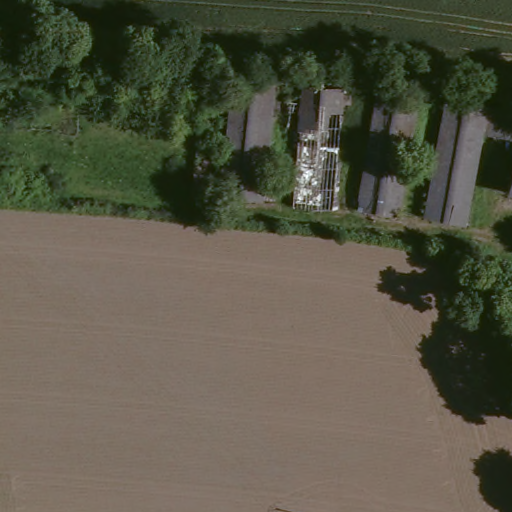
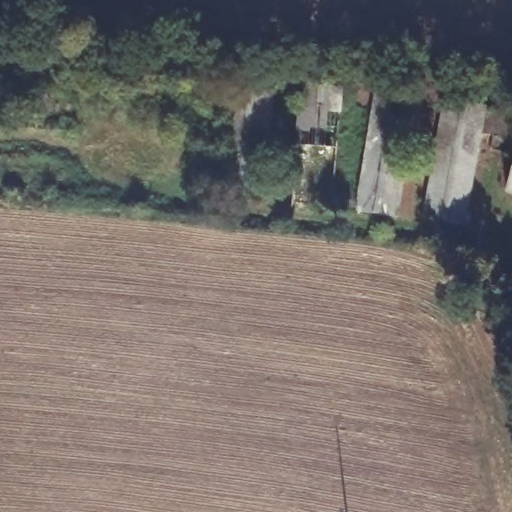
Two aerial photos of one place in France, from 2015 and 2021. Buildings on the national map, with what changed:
unchanged [(191,170),(216,176),(240,85),(280,95),(251,206),(185,190),(191,170)]
unchanged [(305,88),(344,96),(317,214),(279,206),(305,88)]
unchanged [(417,100),(390,217),(352,207),(377,91),(417,100)]
unchanged [(490,138),(477,136),(457,224),(418,215),(445,100),(496,112),(498,103),(512,106),(512,155),(488,151),(490,138)]
unchanged [(512,155),(512,196),(502,193),(512,155)]

